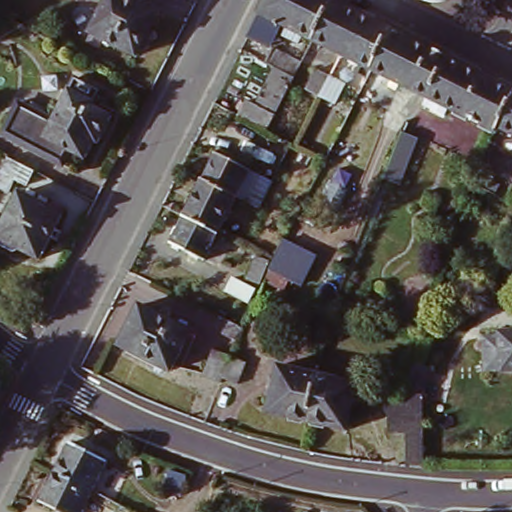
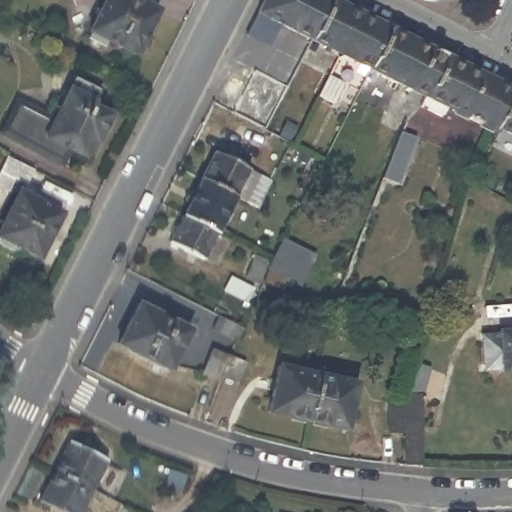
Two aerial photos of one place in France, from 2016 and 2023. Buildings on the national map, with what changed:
unchanged [(135,55),(87,33),(104,0),(127,0),(155,14),(135,55)]
unchanged [(301,28),(296,36),(280,28),(284,19),(278,17),(267,39),(248,29),(263,0),(330,0),(313,34),(301,28)]
unchanged [(344,49),(313,34),(330,0),(345,0),(364,9),(344,49)]
unchanged [(394,25),(374,64),(344,49),(364,9),(394,25)]
unchanged [(416,36),(447,51),(429,91),(374,64),(394,25),(416,36)]
unchanged [(269,125),(241,110),(257,78),(266,81),(275,62),(267,58),(274,44),(301,58),(269,125)]
unchanged [(512,84),(512,94),(499,120),(497,125),(429,91),(447,51),(492,74),(512,84)]
unchanged [(59,111),(80,69),(105,81),(98,95),(118,105),(106,128),(103,126),(93,145),(79,138),(72,152),(12,121),(25,94),(59,111)]
unchanged [(337,104),(323,97),(308,89),(317,70),(332,78),(346,84),(337,104)]
unchanged [(512,94),(512,127),(499,120),(512,94)]
unchanged [(420,138),(406,177),(390,170),(398,150),(405,131),(420,138)]
unchanged [(214,154),(245,170),(233,194),(232,196),(201,182),(214,154)]
unchanged [(29,186),(18,179),(11,192),(0,186),(0,180),(10,158),(37,172),(29,186)]
unchanged [(232,196),(215,233),(183,218),(201,182),(232,196)]
unchanged [(61,212),(38,254),(21,244),(15,249),(0,241),(0,222),(17,189),(61,212)]
unchanged [(244,247),(257,254),(253,262),(226,249),(217,267),(170,244),(183,218),(215,233),(226,238),(237,244),(244,247)]
unchanged [(301,284),(268,269),(271,260),(276,249),(281,240),(312,254),(301,284)]
unchanged [(255,277),(260,265),(268,269),(263,280),(255,277)]
unchanged [(339,301),(365,304),(364,319),(334,314),(339,301)]
unchanged [(189,331),(169,371),(119,346),(139,306),(189,331)]
unchanged [(249,328),(243,346),(224,337),(231,319),(249,328)]
unchanged [(502,330),(512,330),(512,370),(504,371),(504,368),(488,369),(487,335),(502,334),(502,330)]
unchanged [(250,364),(241,384),(226,379),(223,384),(206,376),(218,352),(234,358),(237,359),(250,364)]
unchanged [(392,431),(391,404),(407,404),(407,396),(417,364),(432,369),(424,395),(426,464),(409,464),(408,433),(392,431)]
unchanged [(271,412),(281,367),(320,375),(310,420),(271,412)]
unchanged [(320,375),(359,383),(349,429),(310,420),(320,375)]
unchanged [(53,470),(69,439),(106,458),(90,488),(53,470)]
unchanged [(78,512),(68,512),(39,497),(53,470),(90,488),(78,512)]

